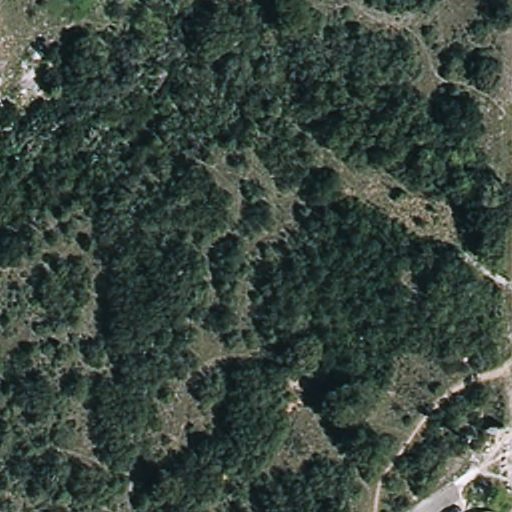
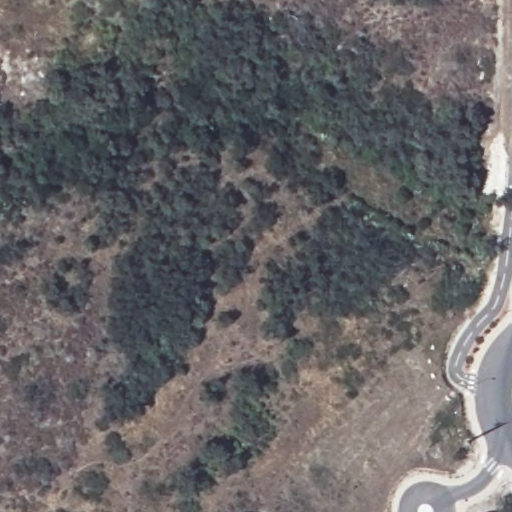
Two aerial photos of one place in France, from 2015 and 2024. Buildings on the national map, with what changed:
unchanged [(0,107),(0,99),(2,107),(0,107)]

